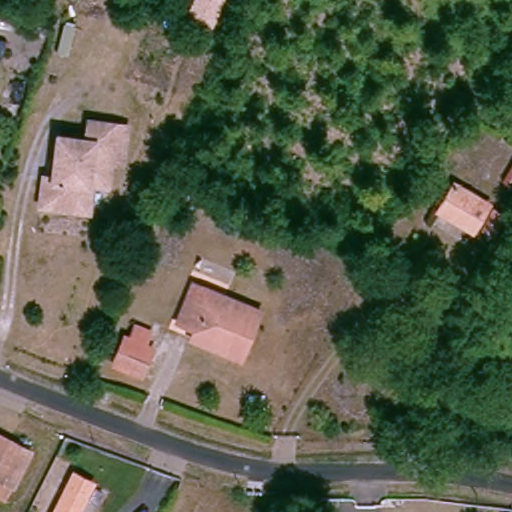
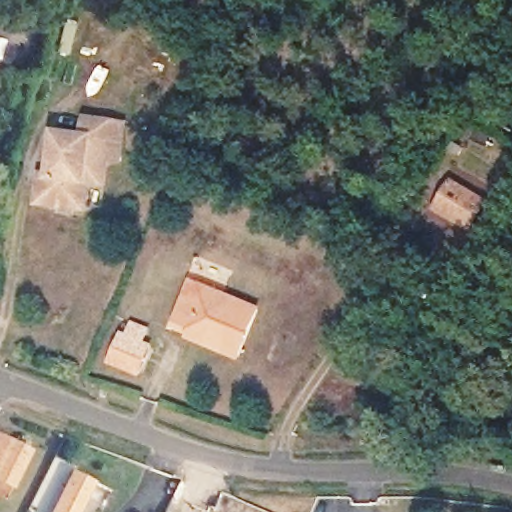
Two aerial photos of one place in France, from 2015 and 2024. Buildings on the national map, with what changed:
unchanged [(36,180),(46,182),(53,138),(79,142),(82,125),(118,130),(111,165),(103,164),(98,189),(83,187),(79,214),(32,207),(36,180)]
unchanged [(483,199),(468,226),(435,206),(451,181),(483,199)]
unchanged [(502,211),(493,229),(481,222),(492,205),(502,211)]
unchanged [(194,332),(177,326),(185,301),(192,287),(210,292),(260,313),(240,362),(221,355),(191,342),(194,332)]
unchanged [(153,354),(141,379),(115,369),(127,342),(153,354)]
unchanged [(27,457),(8,492),(0,488),(0,461),(7,448),(27,457)]
unchanged [(73,474),(94,485),(80,512),(54,512),(73,474)]

